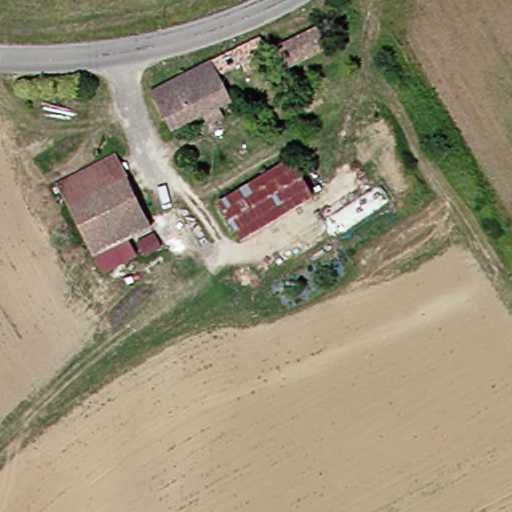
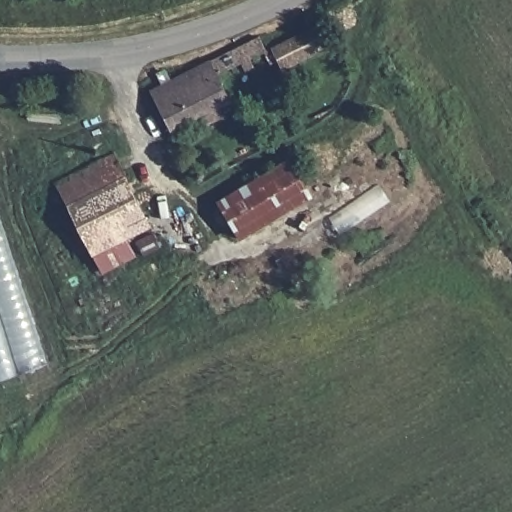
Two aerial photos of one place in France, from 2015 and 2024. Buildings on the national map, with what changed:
unchanged [(343,51),(303,76),(286,52),(328,26),(343,51)]
unchanged [(270,38),(281,54),(230,84),(242,103),(234,109),(242,120),(225,132),(216,117),(184,136),(162,96),(226,56),(270,38)]
unchanged [(134,152),(149,175),(73,207),(61,188),(134,152)]
unchanged [(315,190),(255,242),(229,209),(291,159),(315,190)]
unchanged [(149,175),(168,227),(103,260),(73,207),(149,175)]
new [(0,380),(0,224),(44,367),(0,380)]

